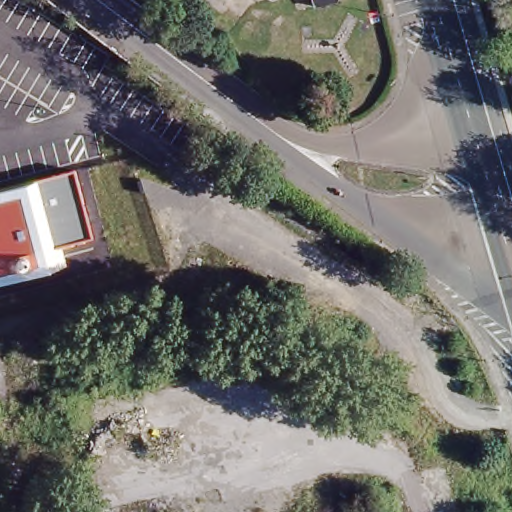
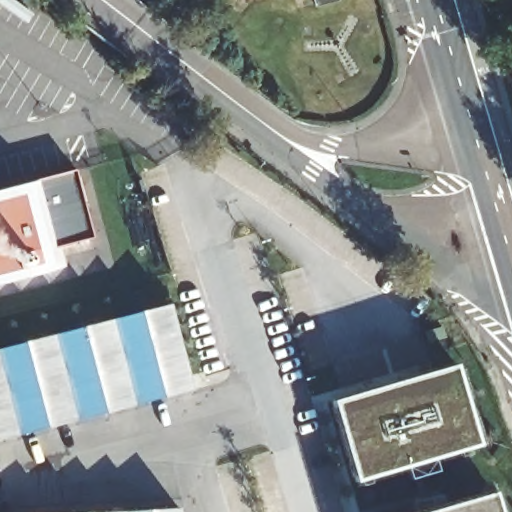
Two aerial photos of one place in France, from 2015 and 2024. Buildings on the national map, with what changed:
unchanged [(63,246),(66,266),(51,270),(0,284),(0,189),(28,182),(38,180),(75,169),(93,239),(63,246)]
new [(191,383),(0,434),(0,344),(168,297),(191,383)]
new [(456,358),(478,440),(356,474),(331,396),(456,358)]
new [(416,508),(412,497),(438,489),(442,501),(493,485),(501,512),(404,512),(416,508)]
new [(185,512),(65,512),(184,504),(185,512)]

